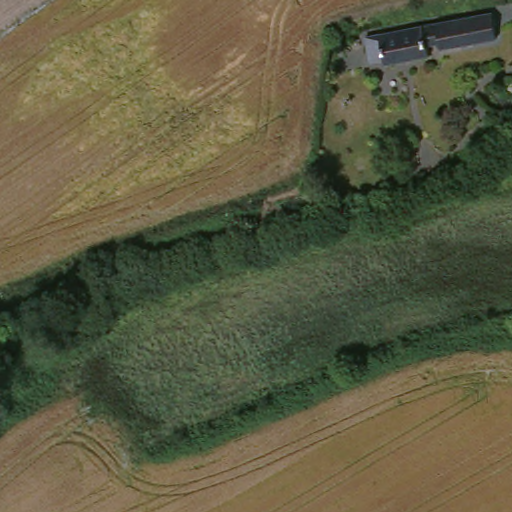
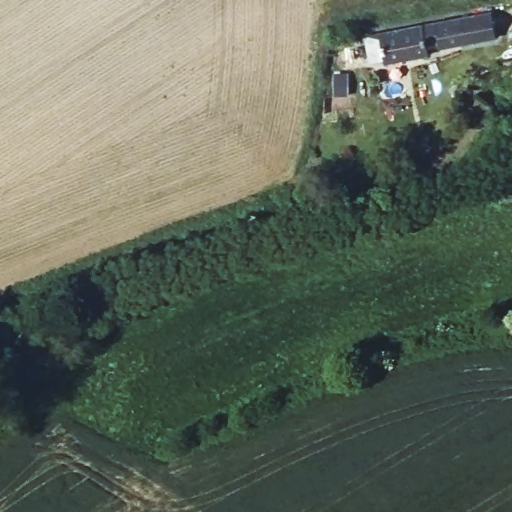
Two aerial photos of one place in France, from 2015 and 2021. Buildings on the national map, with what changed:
unchanged [(433,53),(430,44),(414,49),(417,61),(374,71),(372,67),(359,69),(354,46),(422,29),(424,30),(482,18),(487,42),(433,53)]

